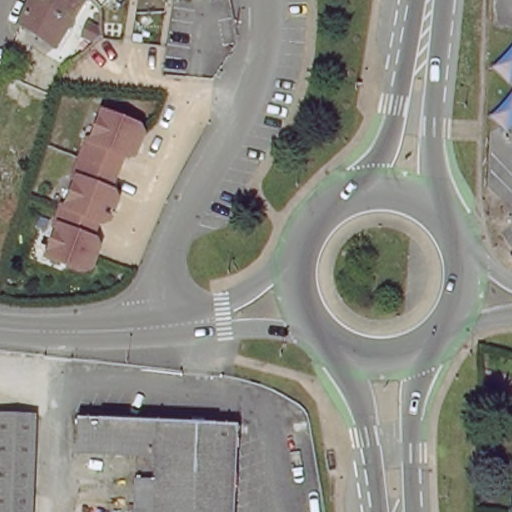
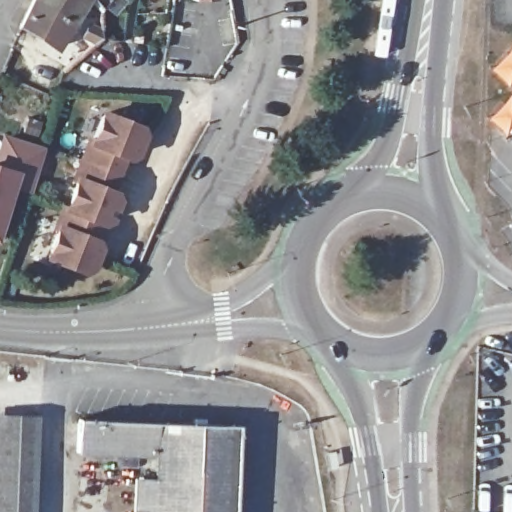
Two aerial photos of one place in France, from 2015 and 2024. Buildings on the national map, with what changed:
unchanged [(20,22),(30,0),(80,0),(54,43),(20,22)]
unchanged [(93,0),(106,0),(101,6),(93,0)]
unchanged [(80,35),(85,24),(101,31),(101,33),(98,44),(80,35)]
unchanged [(493,78),(512,55),(512,94),(512,95),(493,78)]
unchanged [(490,126),(512,101),(512,139),(508,144),(490,126)]
unchanged [(116,125),(135,131),(138,139),(131,158),(123,161),(119,160),(106,195),(110,197),(114,205),(106,224),(99,228),(95,226),(90,238),(88,244),(89,244),(93,246),(96,253),(89,273),(82,276),(81,276),(46,263),(57,233),(53,232),(60,213),(63,215),(74,185),(71,184),(84,146),(88,148),(99,118),(116,125)]
new [(45,145),(30,193),(13,187),(0,225),(0,132),(45,145)]
unchanged [(39,419),(33,512),(0,512),(0,416),(39,419)]
unchanged [(138,476),(157,476),(157,455),(84,452),(84,418),(241,422),(238,512),(136,512),(138,476)]

